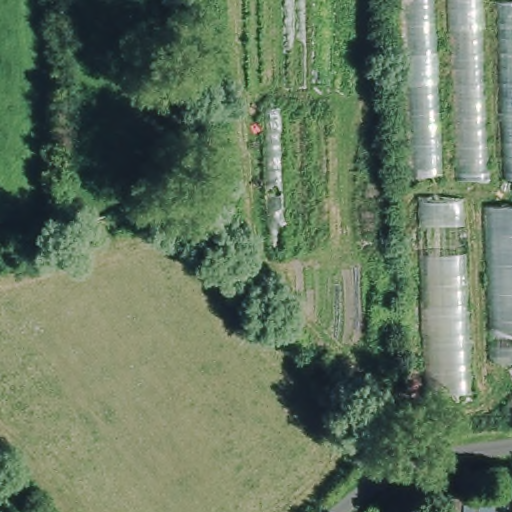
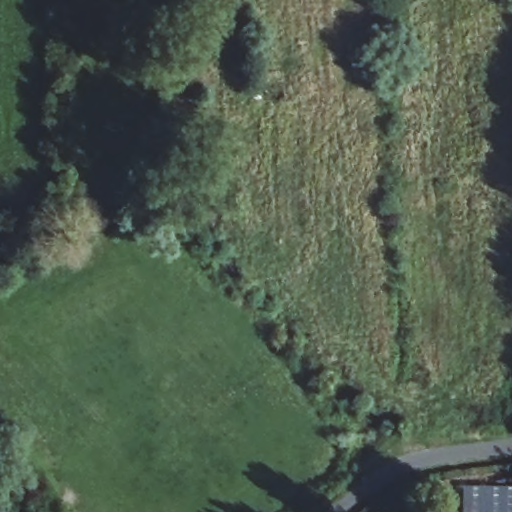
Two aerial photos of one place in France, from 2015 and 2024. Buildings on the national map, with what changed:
demolished [(472,363),(474,394),(427,397),(416,178),(409,178),(401,0),(512,0),(512,363),(472,363)]
unchanged [(461,489),(500,490),(501,512),(460,512),(461,489)]

